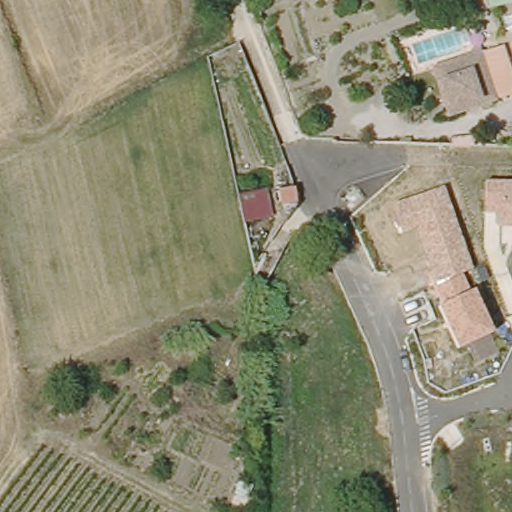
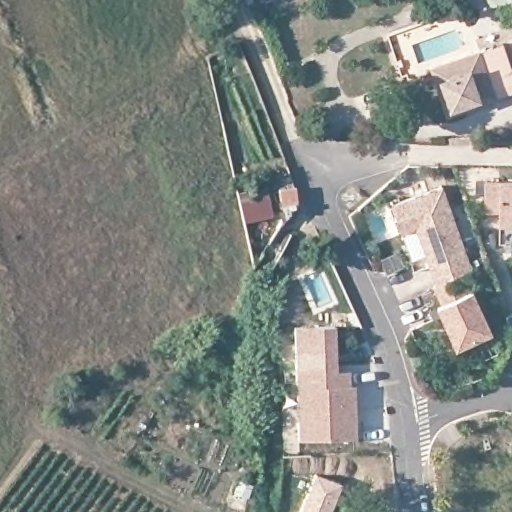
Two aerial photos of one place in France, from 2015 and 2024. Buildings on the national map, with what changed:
unchanged [(512,0),(512,22),(508,0),(512,0)]
unchanged [(436,66),(509,55),(512,75),(512,100),(508,105),(476,110),(443,115),(438,80),(436,66)]
unchanged [(485,214),(484,181),(512,181),(512,227),(499,227),(499,214),(485,214)]
unchanged [(445,302),(416,230),(402,235),(391,205),(443,187),(473,268),(461,274),(469,291),(475,289),(493,332),(456,347),(438,307),(445,302)]
new [(334,326),(336,370),(349,370),(350,385),(353,385),(356,440),(296,442),(292,326),(334,326)]
new [(314,474),(340,484),(330,512),(299,512),(314,474)]

